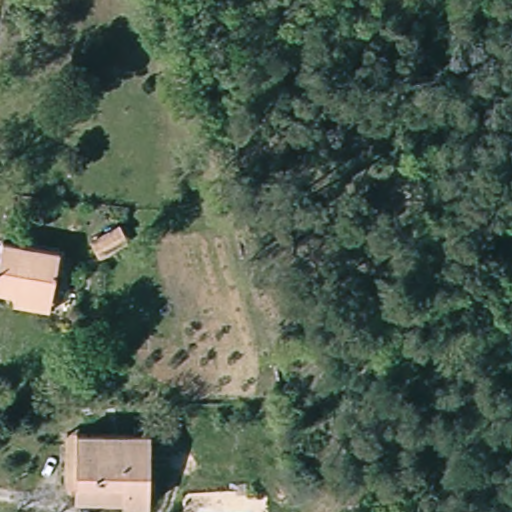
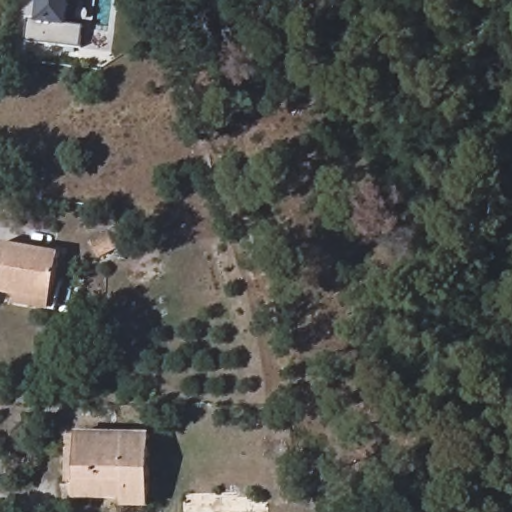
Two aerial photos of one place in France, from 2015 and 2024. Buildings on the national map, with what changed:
new [(69,24),(83,26),(79,47),(26,40),(28,20),(36,20),(39,0),(72,0),(69,24)]
unchanged [(72,254),(65,302),(8,294),(13,247),(72,254)]
unchanged [(79,485),(66,485),(66,438),(79,438),(161,438),(162,508),(136,508),(136,501),(80,501),(79,485)]

